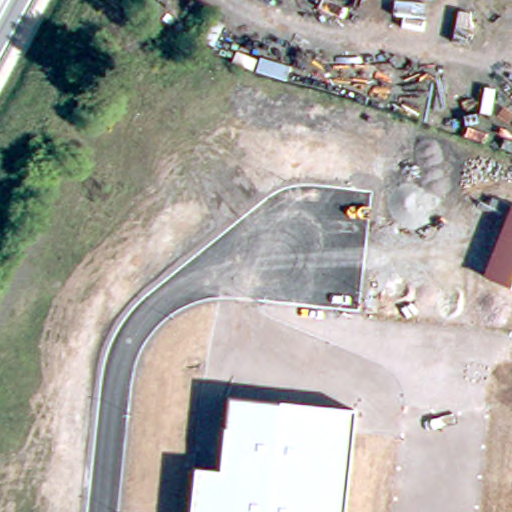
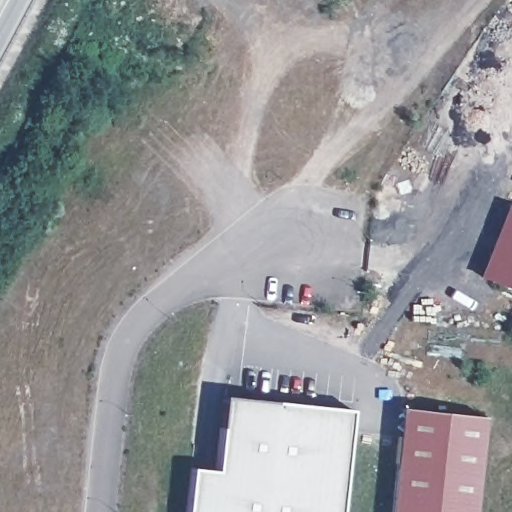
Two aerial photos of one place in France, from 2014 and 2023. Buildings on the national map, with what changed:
unchanged [(512,289),(480,274),(509,205),(512,206),(512,289)]
unchanged [(350,410),(340,512),(185,512),(188,465),(216,470),(225,396),(350,410)]
new [(474,512),(391,512),(401,407),(485,416),(474,512)]

